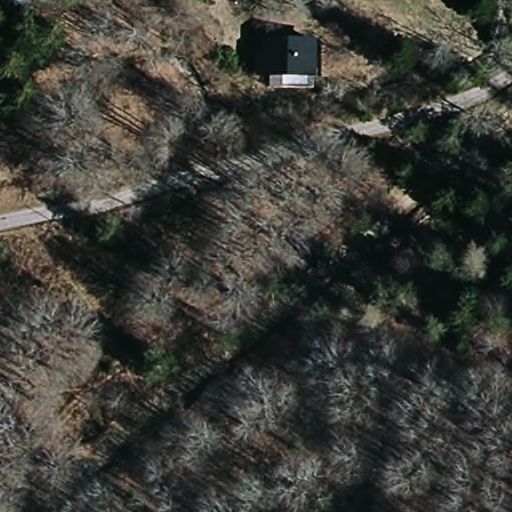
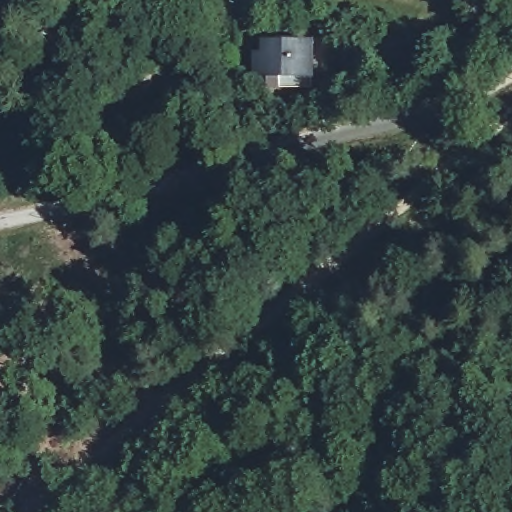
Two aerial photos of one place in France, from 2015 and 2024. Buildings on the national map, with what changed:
unchanged [(26,0),(26,7),(4,7),(3,0),(26,0)]
unchanged [(276,55),(277,41),(319,42),(318,76),(275,75),(266,74),(267,55),(276,55)]

